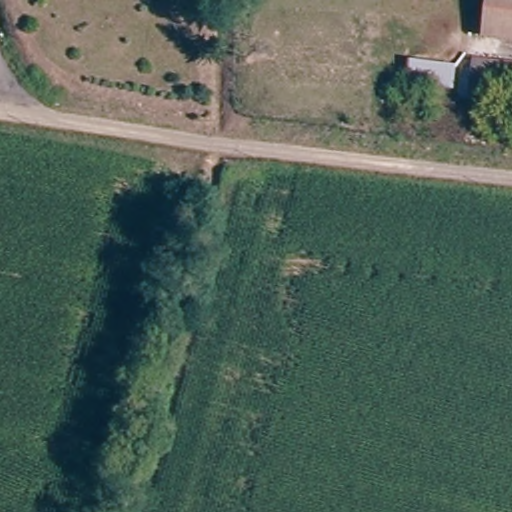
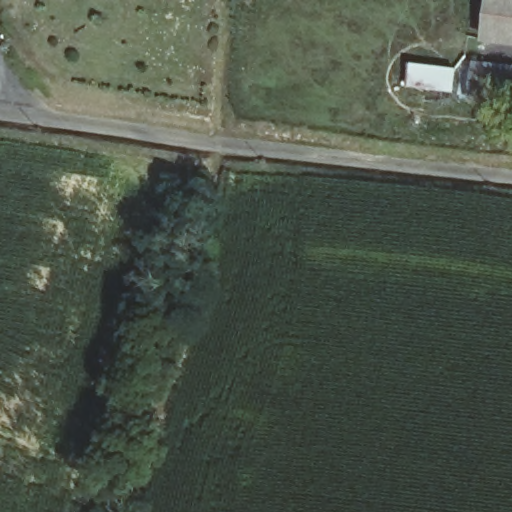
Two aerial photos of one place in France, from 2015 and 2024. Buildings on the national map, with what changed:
unchanged [(483,0),(512,0),(512,44),(480,42),(483,0)]
unchanged [(512,107),(480,105),(469,104),(471,64),(477,65),(512,67),(512,107)]
unchanged [(500,126),(512,128),(512,142),(499,140),(500,126)]

